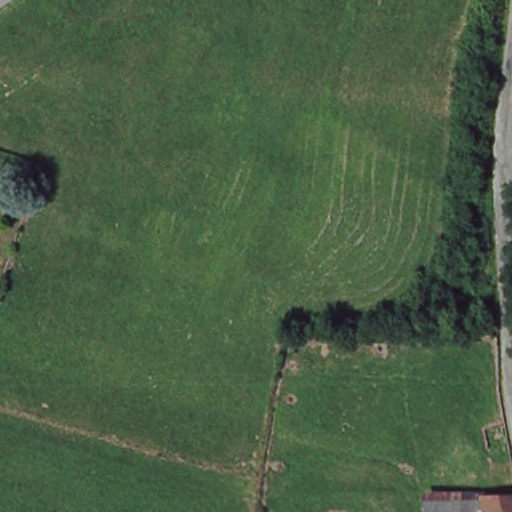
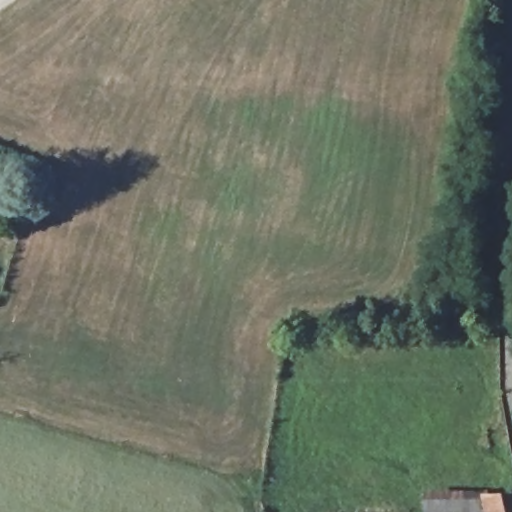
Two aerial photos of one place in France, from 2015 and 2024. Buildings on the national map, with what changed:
unchanged [(491,512),(427,512),(427,500),(491,498),(491,512)]
unchanged [(512,498),(512,512),(491,512),(491,498),(512,498)]

